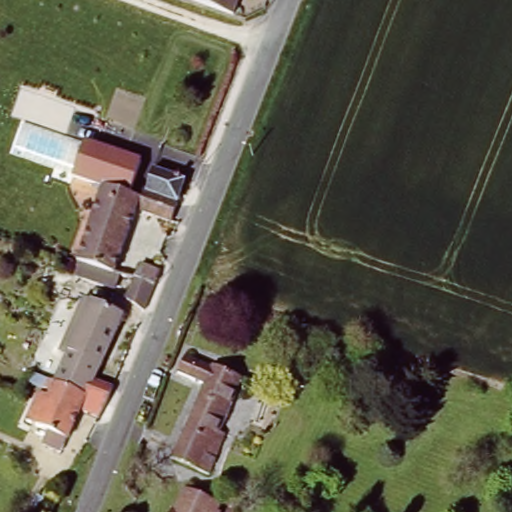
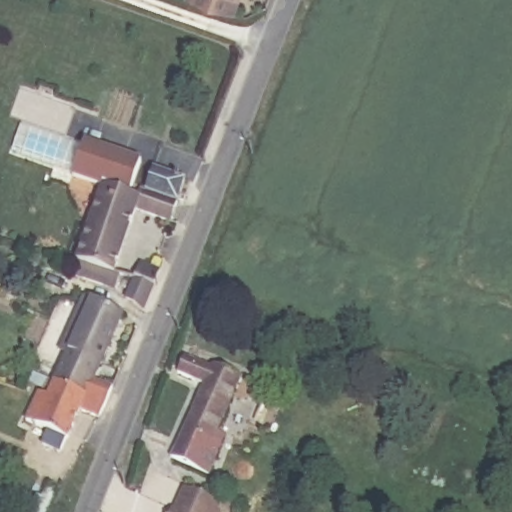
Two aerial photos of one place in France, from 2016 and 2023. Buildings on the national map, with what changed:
unchanged [(233,11),(201,0),(238,0),(233,11)]
unchanged [(86,147),(88,141),(106,148),(147,163),(137,191),(145,194),(146,189),(152,192),(160,168),(186,178),(183,199),(175,221),(141,208),(119,271),(80,259),(100,203),(70,192),(86,147)]
unchanged [(146,308),(142,306),(126,299),(135,276),(141,262),(158,269),(161,271),(156,283),(146,308)]
unchanged [(95,396),(95,397),(62,383),(61,383),(71,360),(57,354),(83,296),(131,317),(103,381),(95,396)]
unchanged [(208,360),(209,358),(240,371),(221,421),(227,424),(210,468),(172,452),(202,376),(180,367),(186,350),(208,360)]
unchanged [(88,412),(75,441),(66,437),(61,450),(51,446),(57,433),(31,422),(45,394),(55,398),(61,383),(62,383),(95,397),(95,396),(103,381),(115,386),(122,389),(120,393),(115,405),(107,402),(100,417),(88,412)]
unchanged [(177,505),(181,495),(186,483),(202,489),(217,496),(225,499),(222,505),(219,512),(171,512),(174,504),(177,505)]

